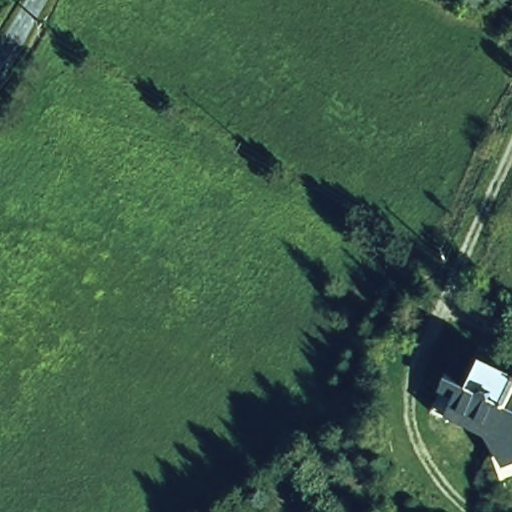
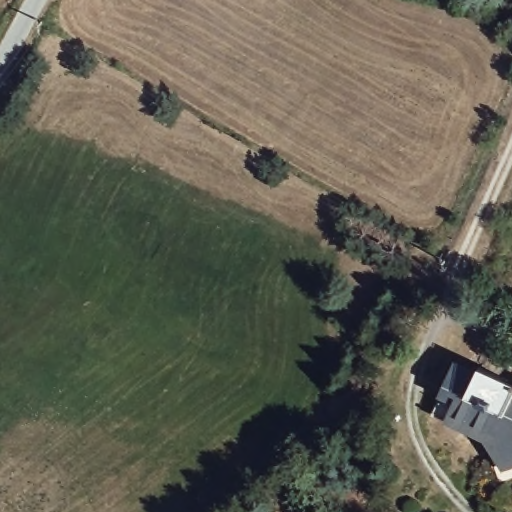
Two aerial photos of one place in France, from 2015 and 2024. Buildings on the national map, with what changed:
unchanged [(512,473),(497,477),(487,442),(430,408),(458,359),(479,372),(483,364),(512,382),(512,473)]

